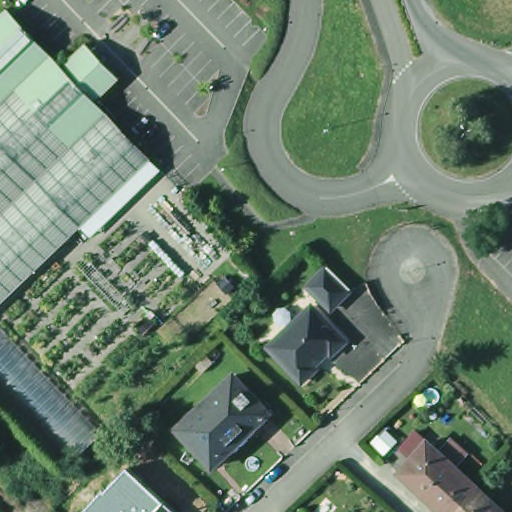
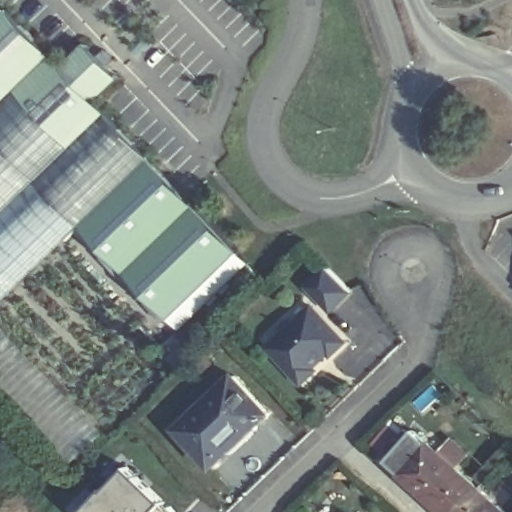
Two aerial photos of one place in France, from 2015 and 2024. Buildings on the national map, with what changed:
unchanged [(64,68),(88,45),(123,81),(99,105),(153,162),(83,230),(38,185),(0,222),(0,19),(9,10),(64,68)]
new [(153,163),(242,255),(172,322),(83,230),(153,163)]
unchanged [(83,230),(0,309),(0,222),(38,185),(83,230)]
unchanged [(351,289),(331,309),(309,286),(329,267),(351,289)]
unchanged [(331,354),(328,351),(311,367),(314,370),(301,381),(269,347),(311,307),(344,340),(331,354)]
unchanged [(63,471),(0,406),(0,324),(104,432),(63,471)]
unchanged [(173,428),(230,375),(266,412),(249,428),(209,465),(206,461),(173,428)]
unchanged [(440,453),(453,439),(468,452),(455,466),(480,488),(459,512),(445,512),(402,473),(428,442),(440,453)]
unchanged [(106,491),(129,467),(178,512),(83,512),(104,489),(106,491)]
unchanged [(507,512),(459,512),(480,488),(507,512)]

